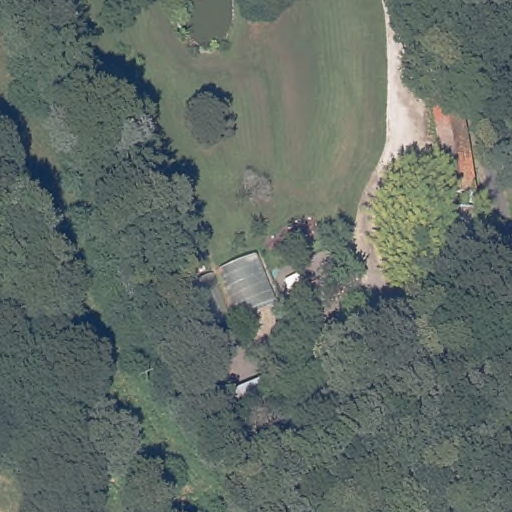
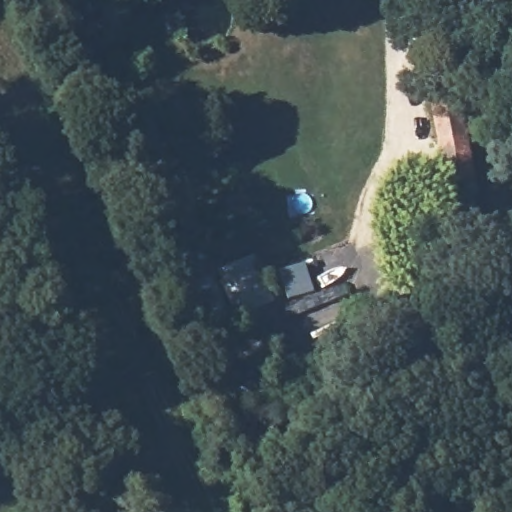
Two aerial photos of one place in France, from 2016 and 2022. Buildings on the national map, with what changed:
unchanged [(459,183),(449,185),(432,97),(460,92),(477,191),(462,193),(459,183)]

